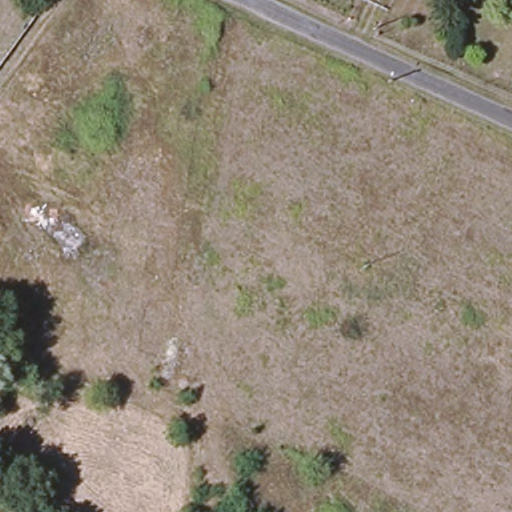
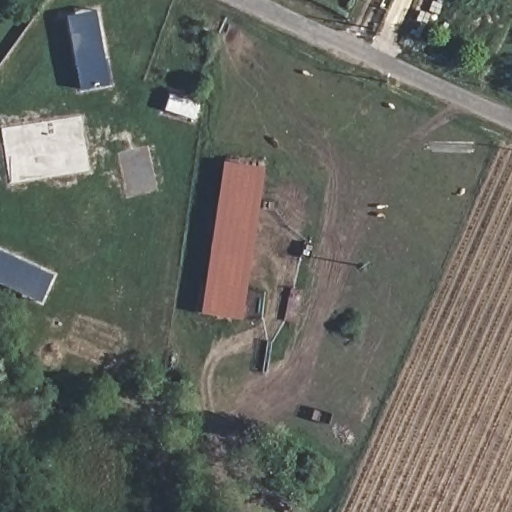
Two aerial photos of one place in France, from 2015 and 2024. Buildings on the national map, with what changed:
new [(226,161),(267,167),(254,252),(213,247),(226,161)]
new [(244,320),(203,313),(213,247),(254,252),(244,320)]
new [(0,283),(0,251),(53,277),(41,303),(0,283)]

